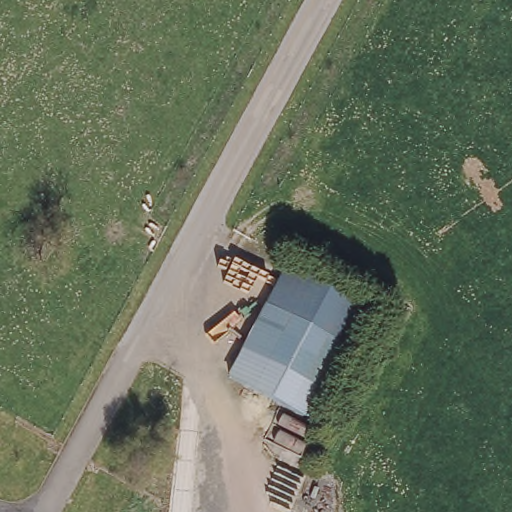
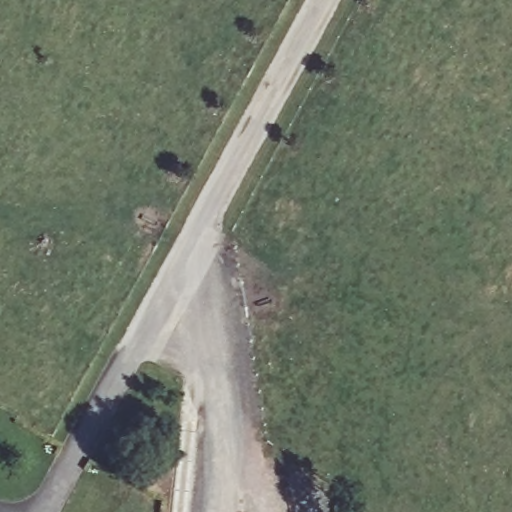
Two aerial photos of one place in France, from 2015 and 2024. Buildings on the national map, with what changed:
demolished [(284,266),(378,313),(323,431),(224,386),(284,266)]

